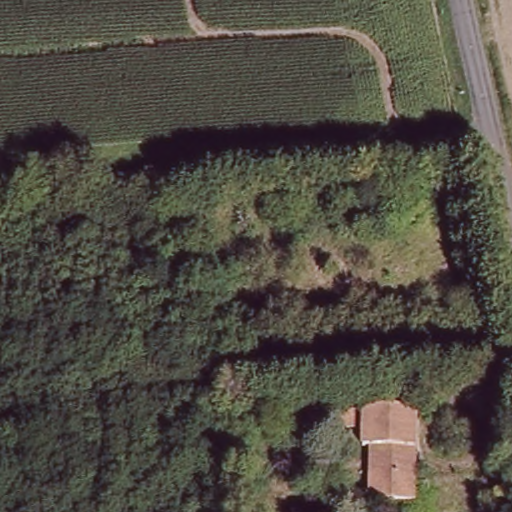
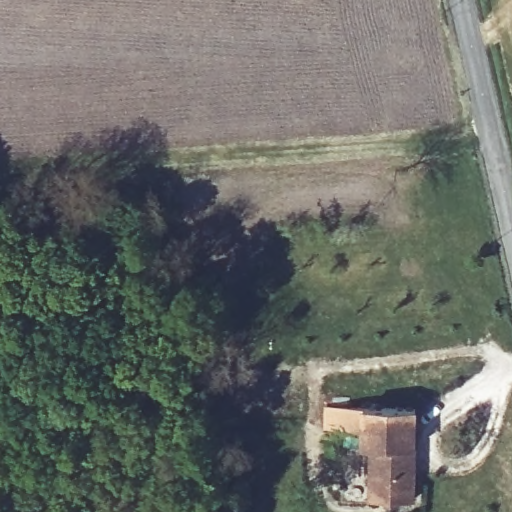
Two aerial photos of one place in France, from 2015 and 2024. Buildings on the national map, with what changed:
unchanged [(368,497),(370,443),(361,442),(362,426),(328,425),(328,405),(415,407),(410,499),(368,497)]

